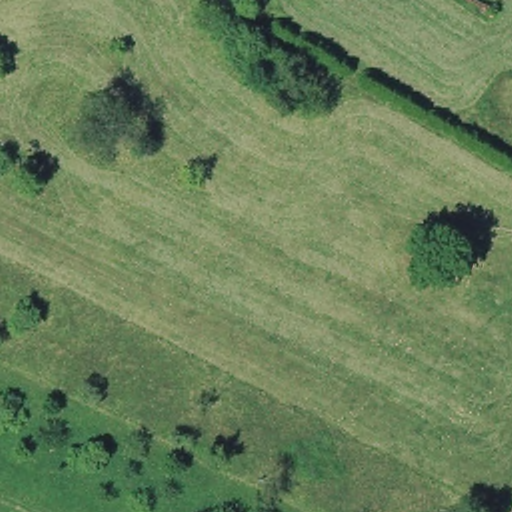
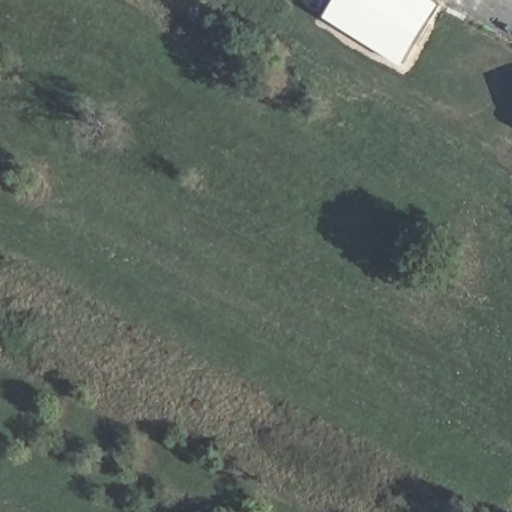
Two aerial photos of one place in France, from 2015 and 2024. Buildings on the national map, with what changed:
new [(434,0),(440,4),(401,67),(323,18),(334,0),(434,0)]

